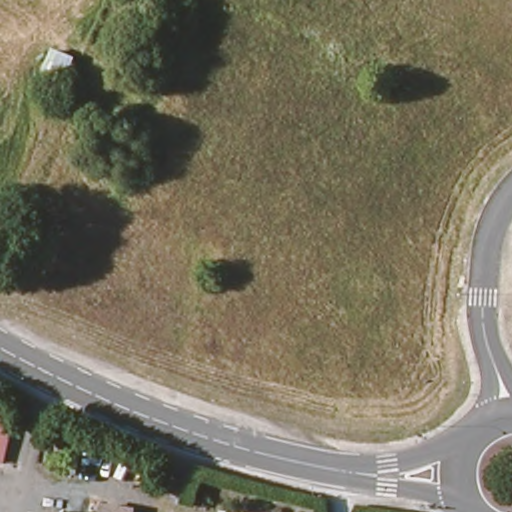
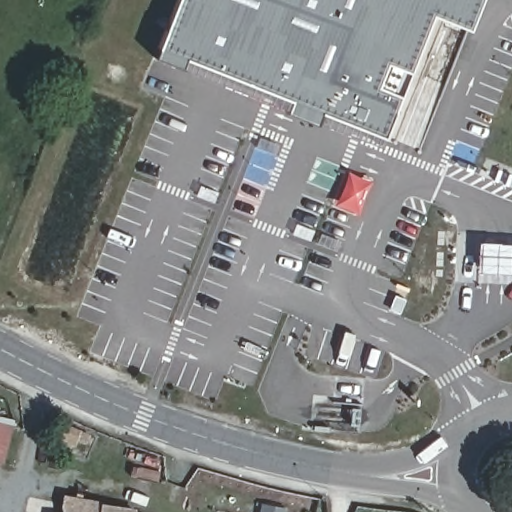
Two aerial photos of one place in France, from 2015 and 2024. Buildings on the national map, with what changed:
new [(496,0),(481,36),(444,21),(395,144),(169,54),(190,0),(496,0)]
new [(480,243),(512,244),(512,274),(478,272),(480,243)]
unchanged [(6,460),(0,459),(0,417),(16,420),(6,460)]
unchanged [(103,508),(133,512),(102,512),(103,508)]

